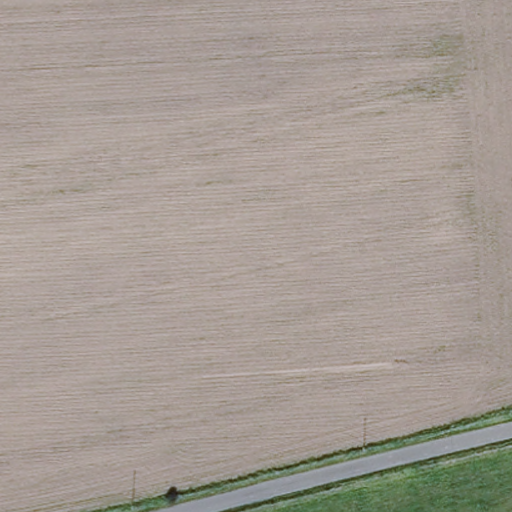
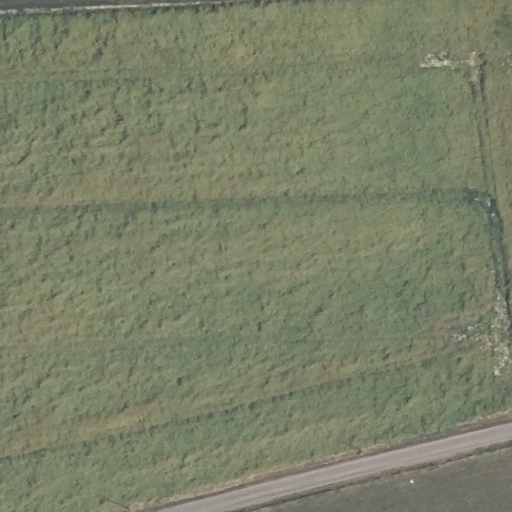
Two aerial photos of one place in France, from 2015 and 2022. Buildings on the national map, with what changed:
[]

